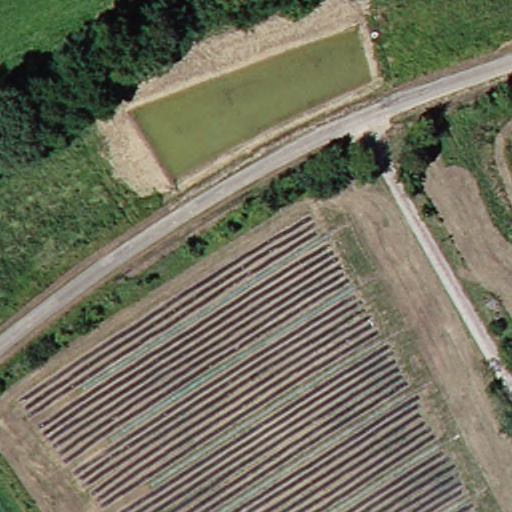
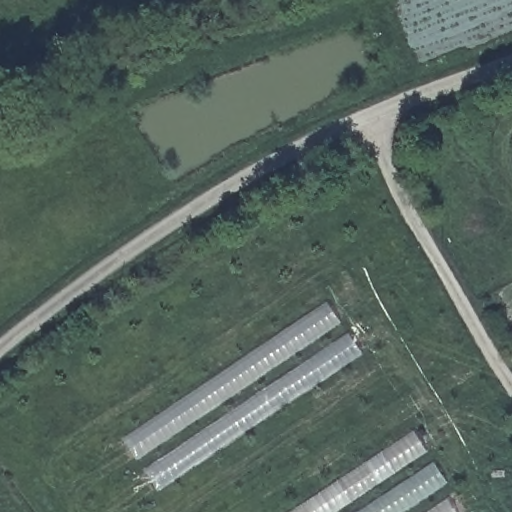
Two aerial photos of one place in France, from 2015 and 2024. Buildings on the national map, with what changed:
new [(123,440),(326,303),(340,323),(136,460),(123,440)]
new [(144,471),(347,334),(362,355),(156,491),(144,471)]
new [(413,431),(427,452),(335,512),(291,512),(413,431)]
new [(432,463),(447,483),(403,512),(358,512),(432,463)]
new [(447,499),(455,512),(426,512),(447,499)]

